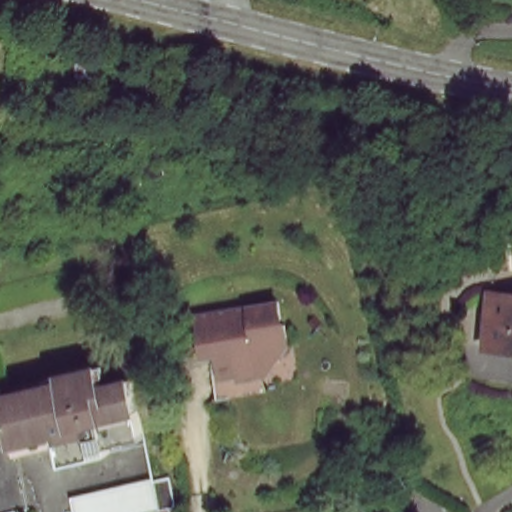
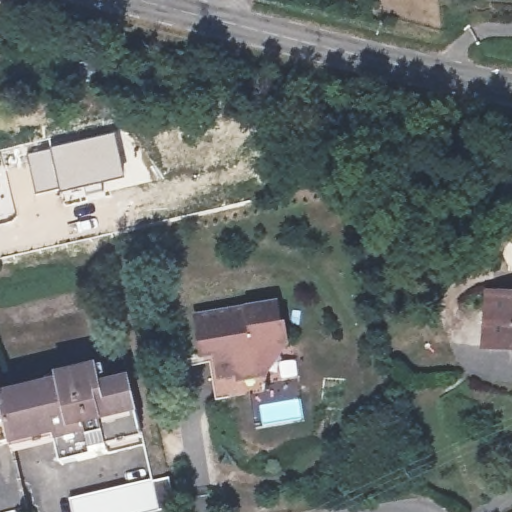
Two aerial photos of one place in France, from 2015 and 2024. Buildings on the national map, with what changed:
new [(116,132),(127,181),(61,194),(50,148),(116,132)]
new [(50,148),(61,194),(35,197),(25,154),(50,148)]
unchanged [(495,296),(512,297),(512,347),(492,345),(495,296)]
unchanged [(208,358),(203,359),(195,317),(276,304),(280,327),(283,327),(286,344),(292,343),(298,379),(262,386),(263,394),(224,401),(216,402),(208,358)]
unchanged [(1,398),(5,412),(53,402),(49,380),(59,378),(96,369),(102,391),(131,383),(147,450),(81,465),(65,469),(61,455),(56,437),(12,448),(14,453),(0,457),(0,398),(1,398)]
unchanged [(182,504),(153,512),(71,512),(67,505),(176,480),(182,504)]

